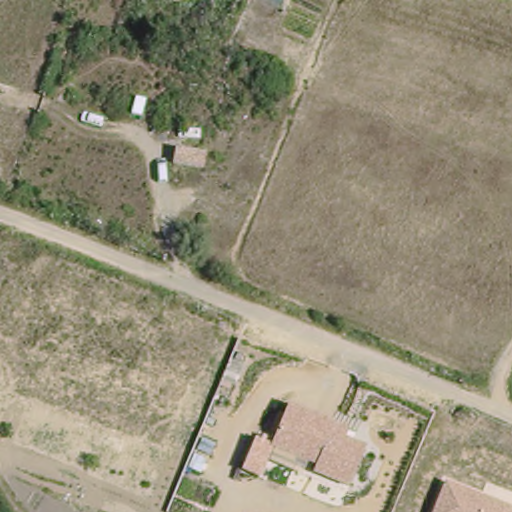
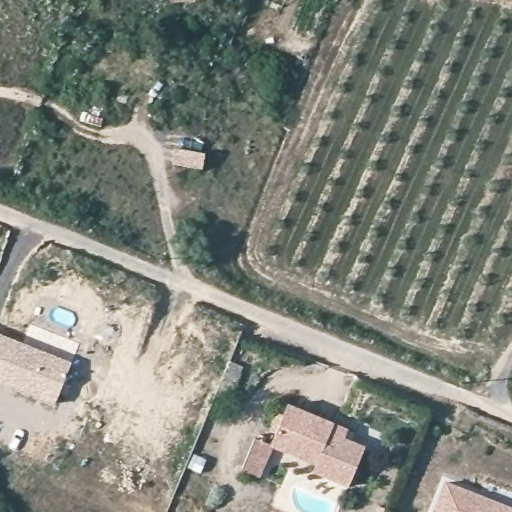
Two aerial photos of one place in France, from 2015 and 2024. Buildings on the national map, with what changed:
unchanged [(207,5),(168,10),(165,0),(207,0),(207,5)]
new [(55,404),(17,391),(0,384),(0,332),(72,360),(55,404)]
unchanged [(312,473),(315,464),(272,448),(260,478),(241,470),(255,437),(272,444),(290,403),(335,422),(350,428),(345,438),(366,446),(350,486),(312,473)]
unchanged [(512,506),(512,512),(433,512),(445,481),(512,506)]

